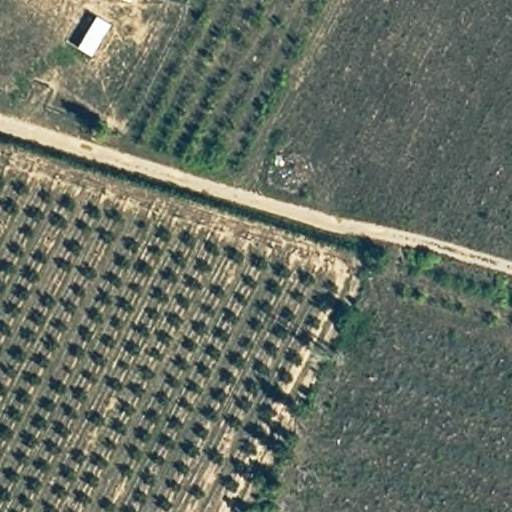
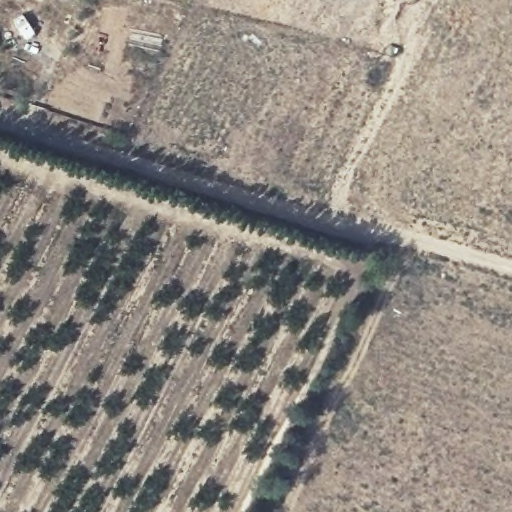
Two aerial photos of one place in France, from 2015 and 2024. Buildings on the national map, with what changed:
[]

